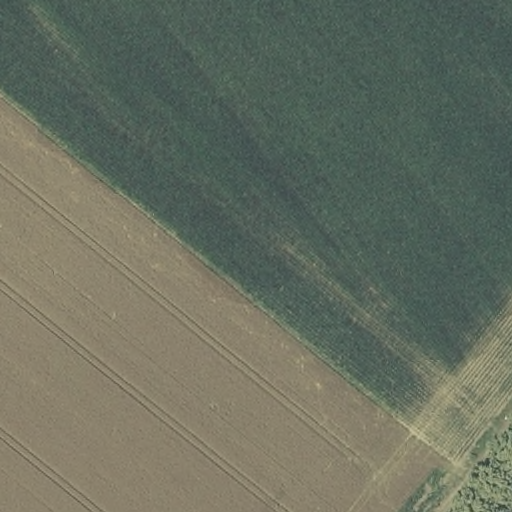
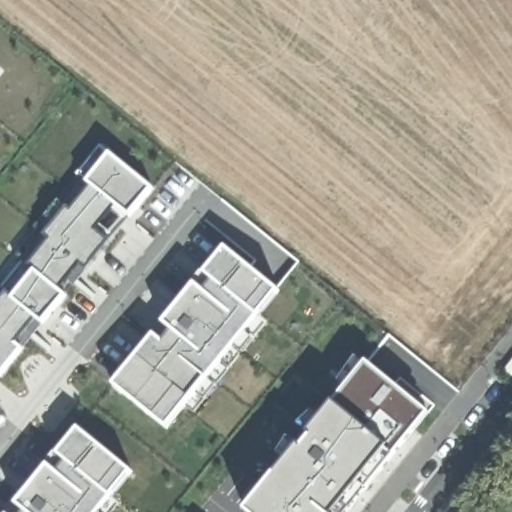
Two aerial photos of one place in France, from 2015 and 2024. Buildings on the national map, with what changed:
new [(22,262),(15,256),(37,229),(34,227),(58,198),(61,200),(80,176),(80,177),(81,177),(82,176),(78,172),(99,147),(100,145),(154,188),(130,217),(116,206),(97,229),(105,237),(110,232),(115,236),(110,241),(87,270),(80,265),(60,290),(67,295),(43,324),(37,319),(17,343),(23,348),(0,376),(0,285),(2,286),(22,262)]
new [(163,323),(195,284),(193,282),(202,271),(204,273),(225,247),(280,291),(245,333),(254,339),(242,353),(234,347),(220,364),(229,371),(217,385),(209,378),(197,392),(205,399),(194,413),(185,406),(184,408),(167,429),(113,385),(163,323)]
new [(279,454),(289,438),(298,446),(299,444),(302,447),(312,436),(307,433),(309,432),(300,425),(314,412),(320,418),(345,387),(339,381),(355,357),(365,364),(367,361),(430,413),(349,512),(247,512),(245,511),(286,460),(279,454)]
new [(49,464),(47,463),(55,452),(57,454),(79,427),(132,471),(100,512),(10,512),(16,504),(49,464)]

